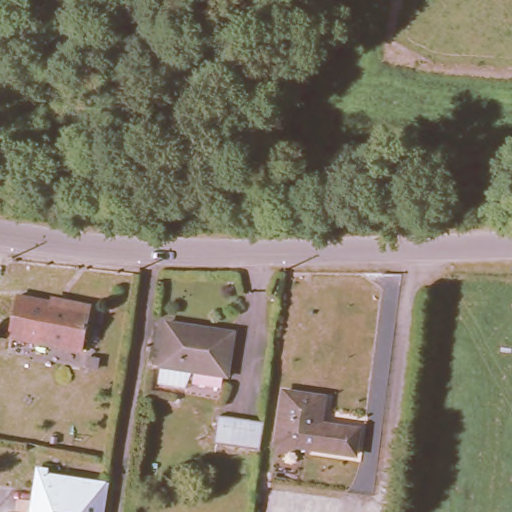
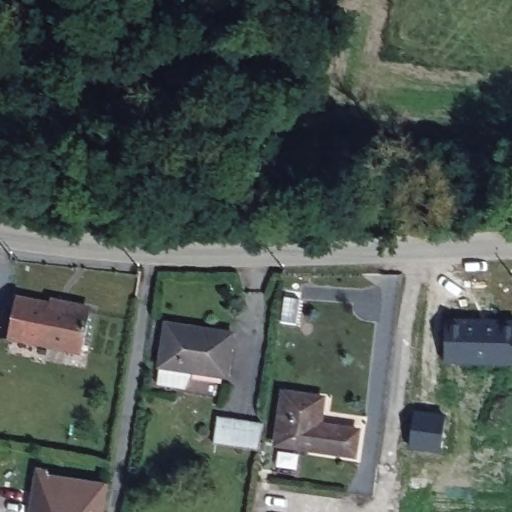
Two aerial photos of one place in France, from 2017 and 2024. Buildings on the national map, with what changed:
unchanged [(10,288),(82,303),(75,342),(2,328),(10,288)]
new [(445,318),(512,319),(512,365),(445,366),(445,318)]
unchanged [(165,321),(232,331),(226,375),(225,374),(160,364),(165,321)]
unchanged [(283,391),(324,397),(321,424),(360,430),(357,453),(276,442),(283,391)]
unchanged [(263,427),(259,455),(213,448),(218,421),(263,427)]
unchanged [(40,471),(110,482),(105,512),(34,512),(40,471)]

